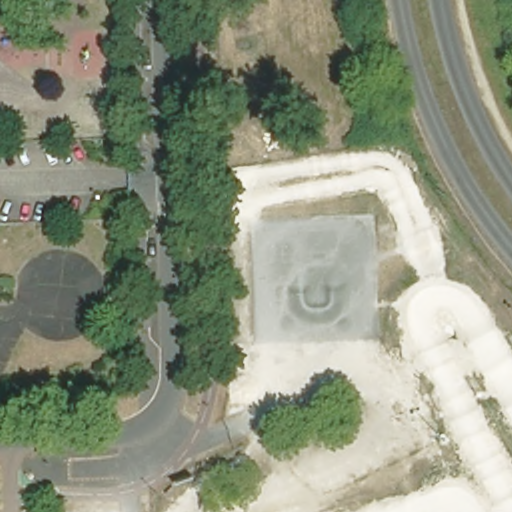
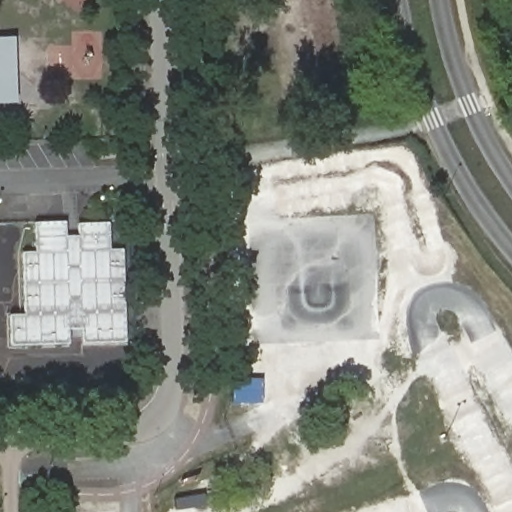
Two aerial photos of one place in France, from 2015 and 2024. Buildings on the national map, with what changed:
new [(14,37),(16,103),(0,104),(0,38),(14,37)]
new [(125,343),(81,344),(81,330),(69,330),(69,343),(11,345),(10,315),(25,314),(23,252),(34,252),(33,223),(66,222),(66,236),(78,236),(77,224),(108,223),(109,249),(123,249),(125,343)]

